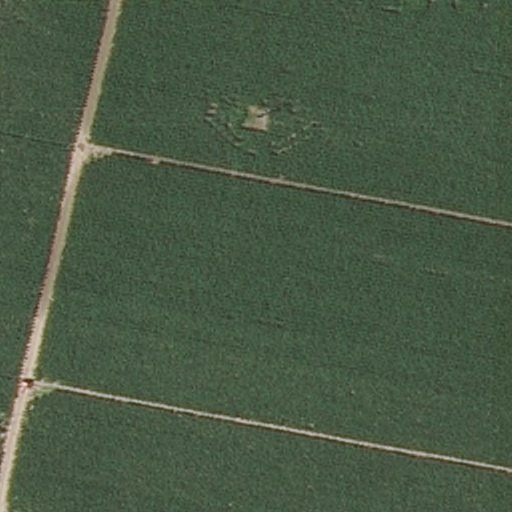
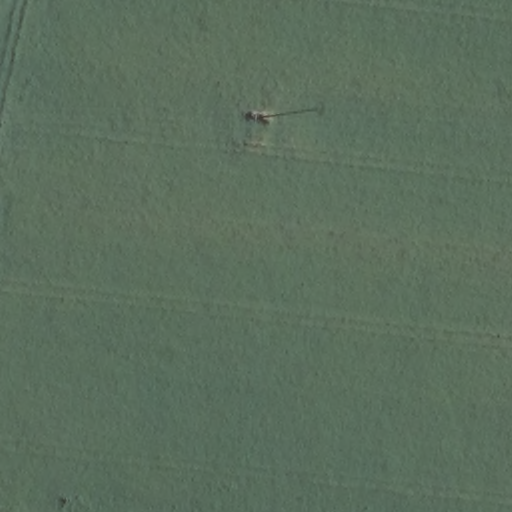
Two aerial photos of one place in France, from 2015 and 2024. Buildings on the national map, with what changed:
[]

